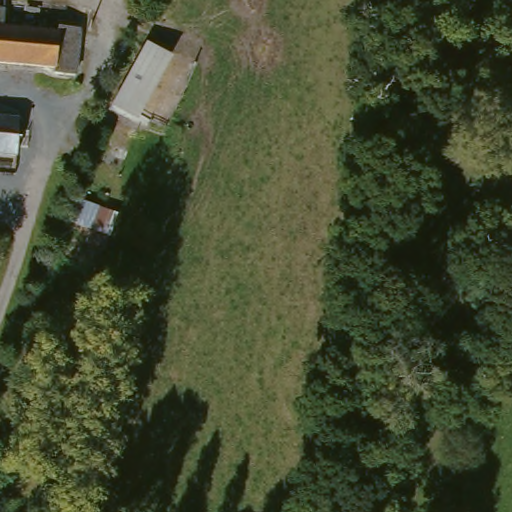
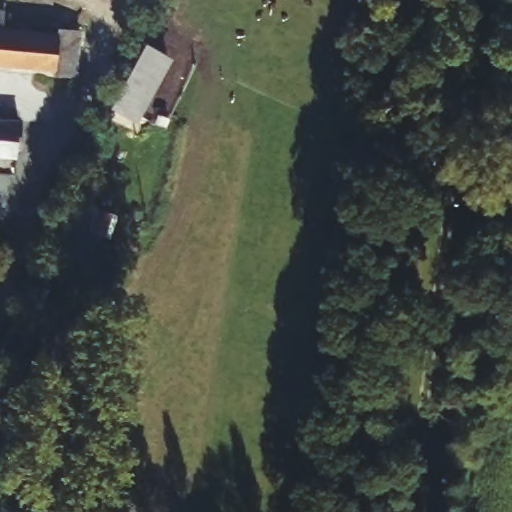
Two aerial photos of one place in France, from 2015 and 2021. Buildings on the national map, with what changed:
unchanged [(3,31),(59,36),(59,30),(80,31),(75,79),(51,76),(51,70),(0,65),(0,13),(4,14),(3,31)]
unchanged [(192,67),(156,133),(118,110),(151,46),(192,67)]
unchanged [(11,166),(0,165),(0,126),(15,127),(11,166)]
unchanged [(106,237),(62,223),(70,200),(113,215),(106,237)]

